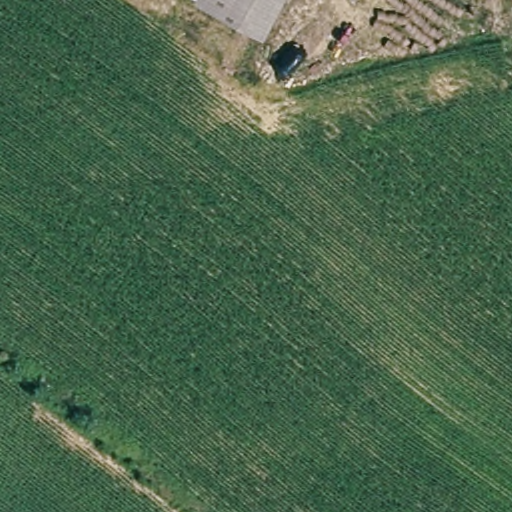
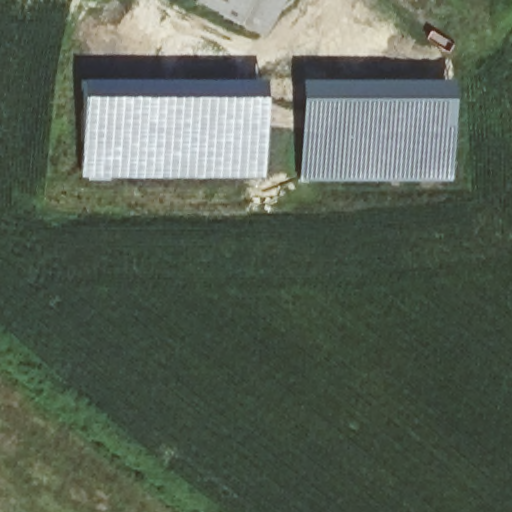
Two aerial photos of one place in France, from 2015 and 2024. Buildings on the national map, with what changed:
unchanged [(264,29),(213,0),(281,0),(264,29)]
new [(296,77),(447,79),(448,96),(446,180),(296,181),(296,77)]
new [(262,81),(261,174),(81,173),(81,80),(262,81)]

